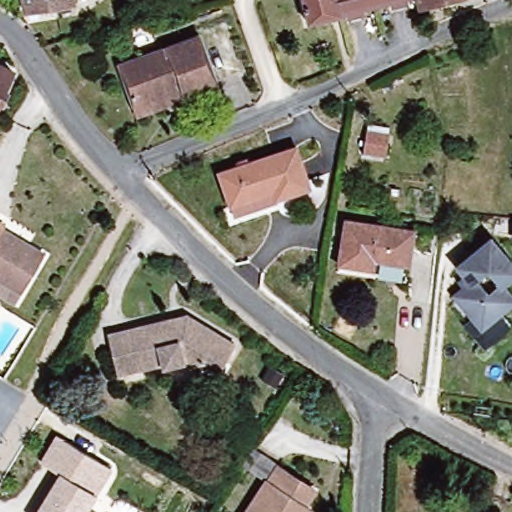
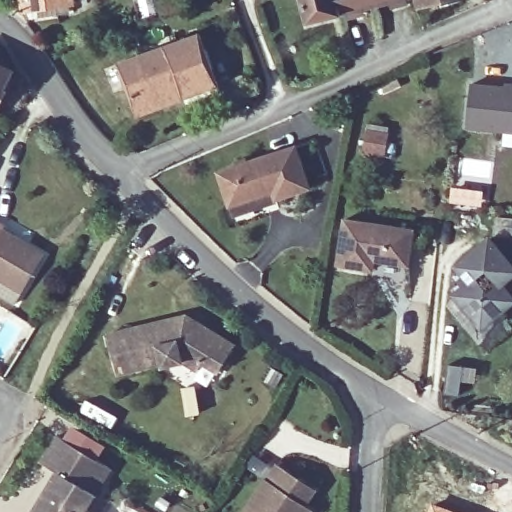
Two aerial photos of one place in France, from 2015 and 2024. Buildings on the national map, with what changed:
unchanged [(77,1),(21,9),(20,0),(77,0),(77,1)]
unchanged [(425,10),(359,35),(324,49),(295,0),(422,0),(425,10)]
unchanged [(476,3),(427,18),(425,10),(422,0),(476,0),(476,3)]
unchanged [(208,88),(187,93),(185,83),(134,96),(126,62),(197,45),(208,88)]
unchanged [(0,87),(0,65),(9,70),(0,87)]
new [(473,85),(512,90),(512,148),(501,146),(503,131),(468,128),(473,85)]
unchanged [(392,131),(388,157),(360,151),(364,126),(392,131)]
unchanged [(308,193),(269,202),(267,192),(230,200),(222,168),(298,151),(308,193)]
unchanged [(405,264),(378,259),(375,268),(340,261),(349,218),(412,231),(405,264)]
unchanged [(0,280),(0,225),(4,227),(1,233),(44,256),(25,293),(0,280)]
unchanged [(462,325),(469,319),(449,297),(458,289),(454,284),(465,275),(455,263),(487,236),(512,264),(512,273),(500,283),(512,297),(512,301),(495,315),(505,326),(481,347),(462,325)]
unchanged [(111,333),(126,329),(191,313),(237,342),(221,369),(210,363),(205,372),(177,356),(159,362),(157,356),(135,362),(120,366),(111,333)]
unchanged [(97,496),(89,509),(93,512),(31,512),(54,470),(39,461),(55,435),(113,467),(97,496)]
unchanged [(297,498),(307,504),(302,512),(241,512),(272,463),(305,485),(297,498)]

